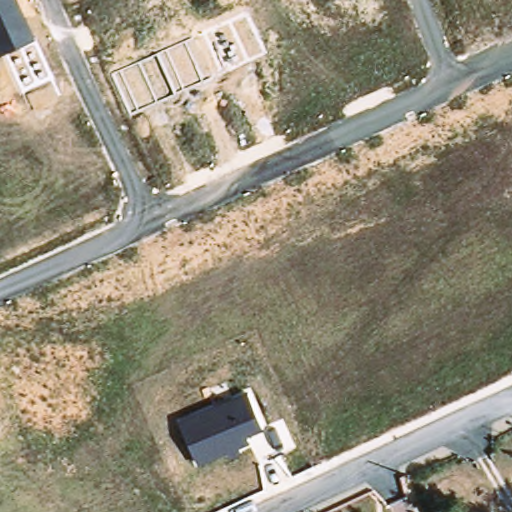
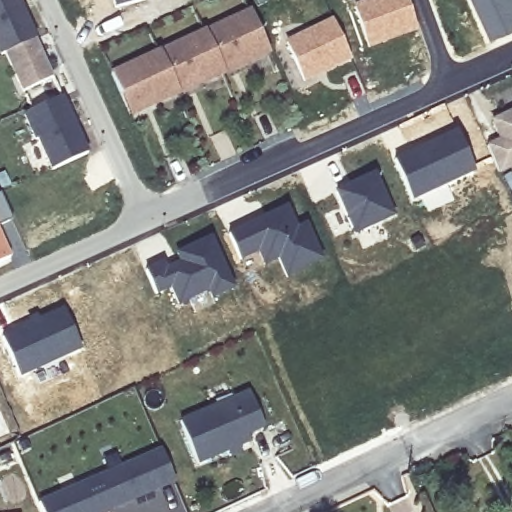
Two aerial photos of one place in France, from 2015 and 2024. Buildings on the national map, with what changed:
unchanged [(19,92),(0,51),(0,0),(20,0),(52,75),(19,92)]
new [(115,7),(113,0),(143,0),(115,7)]
new [(353,4),(365,0),(407,0),(416,31),(368,47),(353,4)]
new [(492,37),(477,0),(512,0),(512,29),(492,37)]
new [(270,55),(129,118),(109,72),(249,9),(270,55)]
new [(304,82),(285,40),(332,19),(350,60),(304,82)]
new [(51,169),(37,139),(34,141),(22,115),(62,94),(87,153),(51,169)]
new [(499,172),(487,145),(498,140),(490,120),(512,109),(512,167),(499,172)]
new [(458,129),(478,171),(414,201),(394,157),(458,129)]
new [(378,169),(397,215),(355,234),(335,190),(378,169)]
new [(0,228),(0,195),(12,222),(0,228)]
new [(290,202),(300,224),(310,219),(327,258),(287,278),(277,260),(265,266),(257,252),(242,260),(229,230),(290,202)]
new [(0,264),(0,235),(11,259),(0,264)]
new [(209,237),(234,290),(211,300),(207,293),(179,305),(170,288),(156,294),(145,267),(209,237)]
new [(41,316),(63,306),(82,349),(20,378),(0,330),(0,328),(39,311),(41,316)]
unchanged [(265,428),(247,437),(250,443),(201,463),(180,417),(246,387),(265,428)]
new [(175,480),(160,486),(102,512),(45,512),(40,501),(146,455),(161,448),(175,480)]

